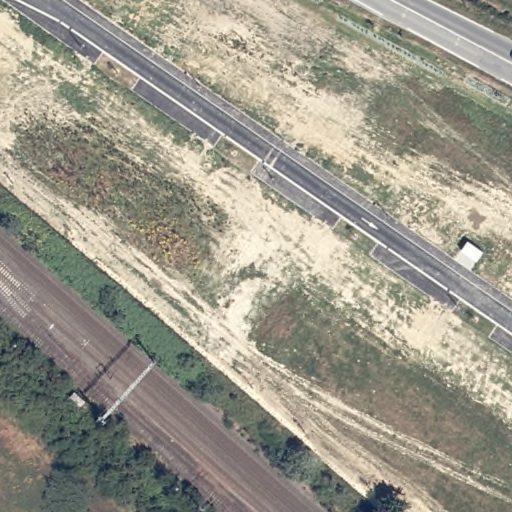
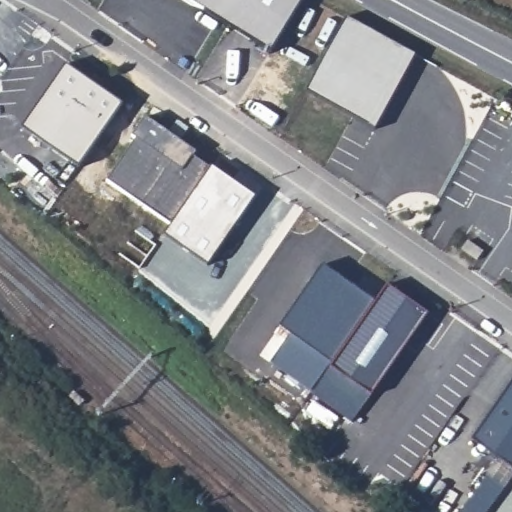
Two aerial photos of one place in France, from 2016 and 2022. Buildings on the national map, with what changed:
unchanged [(416,54),(374,130),(305,91),(344,19),(416,54)]
new [(120,105),(79,169),(21,130),(65,66),(120,105)]
new [(134,140),(131,138),(145,118),(254,197),(209,267),(164,236),(171,226),(108,182),(134,140)]
new [(375,302),(386,286),(427,314),(371,395),(330,367),(332,365),(282,328),(324,267),(375,302)]
new [(473,440),(512,383),(512,468),(473,440)]
new [(503,488),(487,512),(462,512),(486,476),(503,488)]

